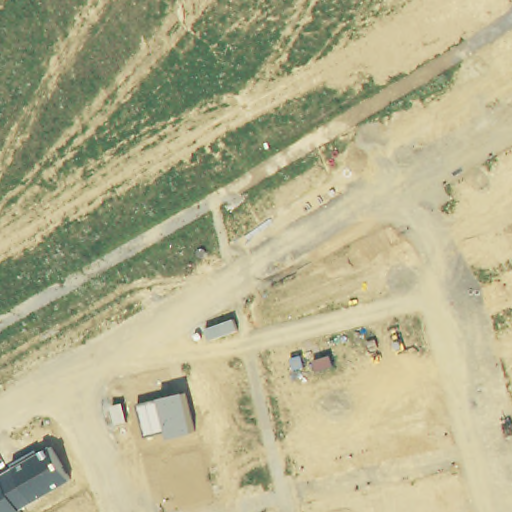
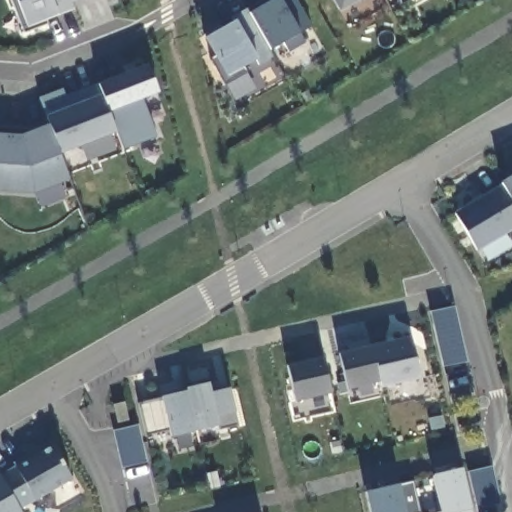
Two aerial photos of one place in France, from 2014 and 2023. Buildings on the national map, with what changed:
new [(70,2),(72,8),(44,19),(46,24),(21,33),(9,0),(69,0),(70,2)]
new [(70,2),(69,0),(79,0),(70,2)]
new [(232,22),(230,18),(263,0),(296,0),(311,27),(299,34),(305,44),(288,53),(282,43),(271,50),(273,58),(257,66),(255,60),(244,66),(248,72),(226,85),(219,73),(222,72),(203,39),(232,22)]
new [(338,11),(332,0),(360,0),(338,11)]
new [(145,64),(156,91),(140,98),(155,136),(121,149),(115,133),(95,84),(145,64)]
new [(61,90),(63,96),(95,84),(100,96),(115,133),(60,153),(46,120),(38,99),(61,90)]
new [(46,120),(60,153),(69,176),(34,190),(0,188),(0,125),(29,126),(46,120)]
new [(501,186),(500,182),(512,176),(512,231),(476,251),(454,214),(501,186)]
new [(453,307),(465,362),(442,367),(429,313),(453,307)]
new [(369,345),(409,336),(419,377),(380,387),(378,380),(369,345)]
new [(369,345),(378,380),(345,387),(336,351),(369,345)]
new [(321,356),(330,392),(294,401),(285,365),(321,356)]
unchanged [(183,388),(207,383),(210,392),(230,388),(234,412),(239,427),(219,431),(218,427),(194,433),(184,394),(183,388)]
unchanged [(137,405),(160,400),(184,394),(194,433),(169,437),(167,431),(145,437),(137,405)]
new [(137,424),(145,461),(121,467),(116,449),(112,430),(137,424)]
unchanged [(69,481),(17,509),(18,512),(0,512),(0,471),(48,443),(69,481)]
new [(490,468),(498,505),(476,510),(468,473),(490,468)]
new [(471,511),(469,512),(441,512),(432,476),(461,469),(471,511)]
unchanged [(413,482),(420,512),(369,512),(365,492),(397,484),(413,482)]

